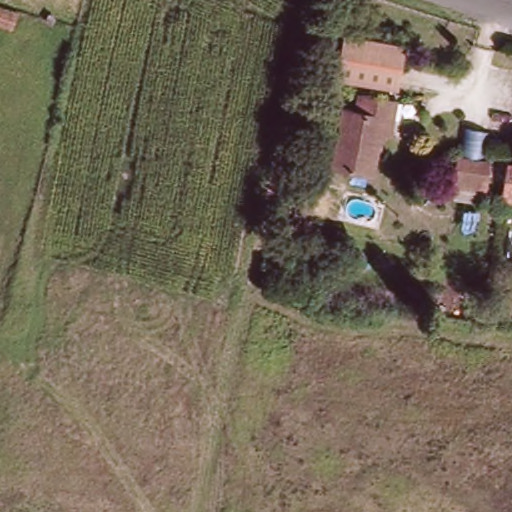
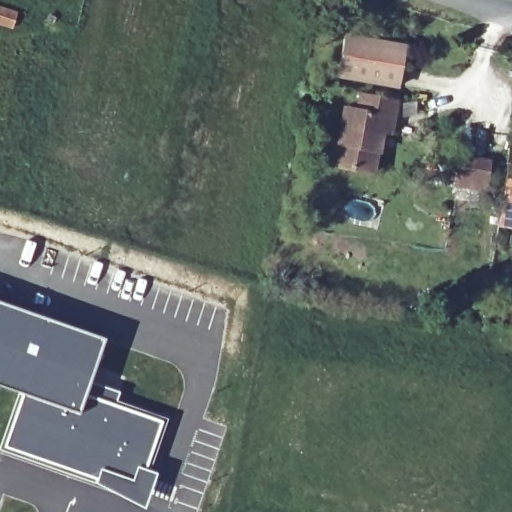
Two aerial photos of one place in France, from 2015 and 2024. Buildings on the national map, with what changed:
unchanged [(398,87),(338,77),(346,37),(405,47),(398,87)]
unchanged [(336,170),(342,112),(355,113),(358,97),(397,100),(394,137),(385,136),(382,156),(378,155),(376,176),(336,170)]
unchanged [(454,192),(459,164),(490,169),(485,197),(454,192)]
unchanged [(501,199),(504,167),(512,169),(512,201),(501,199)]
new [(87,394),(163,420),(138,490),(7,445),(24,393),(0,385),(0,301),(107,337),(87,394)]

